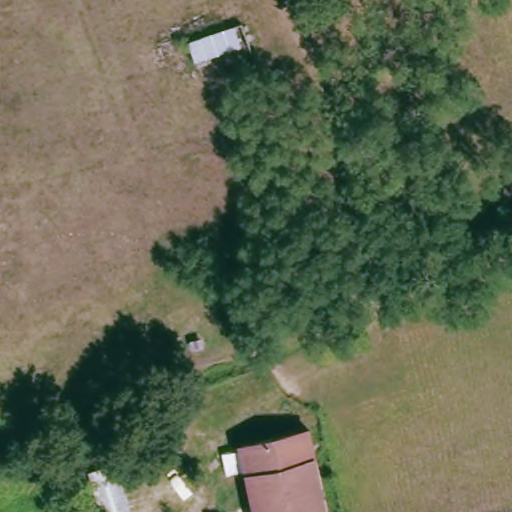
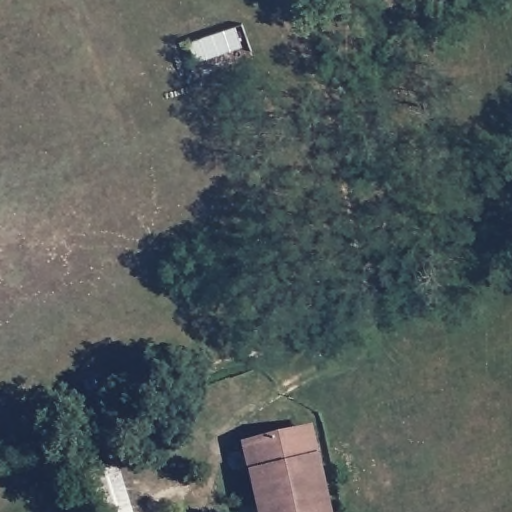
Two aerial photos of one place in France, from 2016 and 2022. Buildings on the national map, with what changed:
unchanged [(192,41),(243,24),(250,53),(237,56),(234,49),(199,65),(192,41)]
unchanged [(312,428),(332,512),(262,512),(246,444),(312,428)]
unchanged [(123,463),(140,512),(102,512),(92,473),(123,463)]

